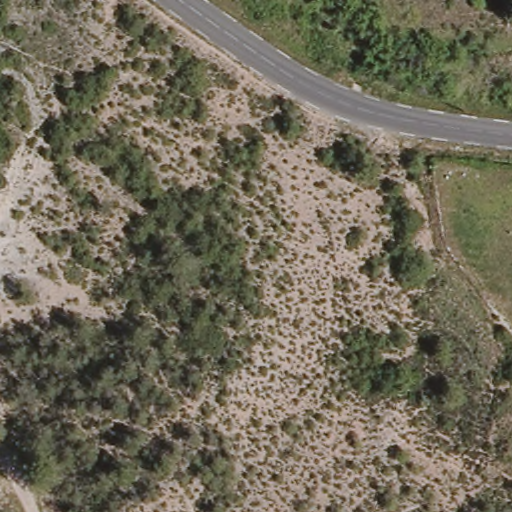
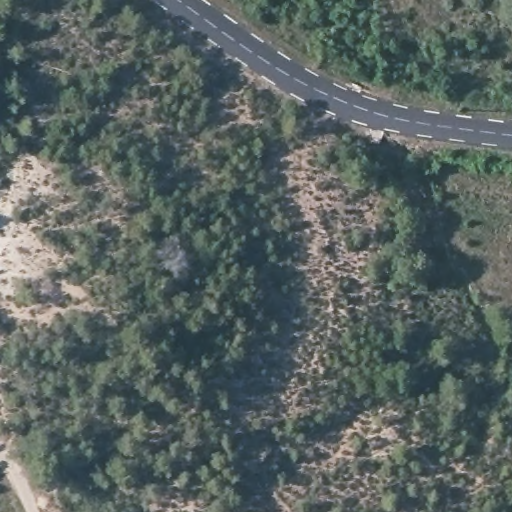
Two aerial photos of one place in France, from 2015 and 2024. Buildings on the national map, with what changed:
[]

